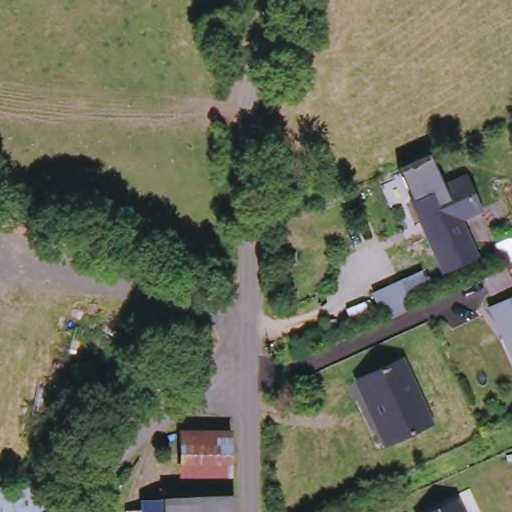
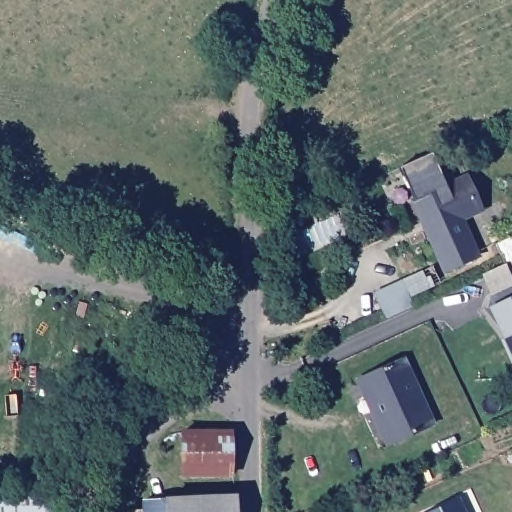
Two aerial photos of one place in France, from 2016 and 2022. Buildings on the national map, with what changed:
unchanged [(419,201),(469,177),(483,209),(465,217),(482,252),(449,267),(419,201)]
unchanged [(512,235),(512,260),(505,263),(495,244),(512,235)]
unchanged [(505,263),(512,277),(512,282),(492,292),(482,275),(496,268),(505,263)]
unchanged [(370,294),(395,281),(409,308),(382,320),(370,294)]
unchanged [(512,296),(512,347),(492,306),(512,296)]
unchanged [(369,393),(361,378),(406,356),(437,420),(399,438),(392,442),(369,393)]
unchanged [(237,433),(238,476),(187,478),(187,434),(237,433)]
unchanged [(145,512),(145,501),(235,498),(235,512),(145,512)]
unchanged [(0,512),(0,501),(53,500),(55,512),(0,512)]
unchanged [(465,512),(443,512),(460,503),(465,512)]

